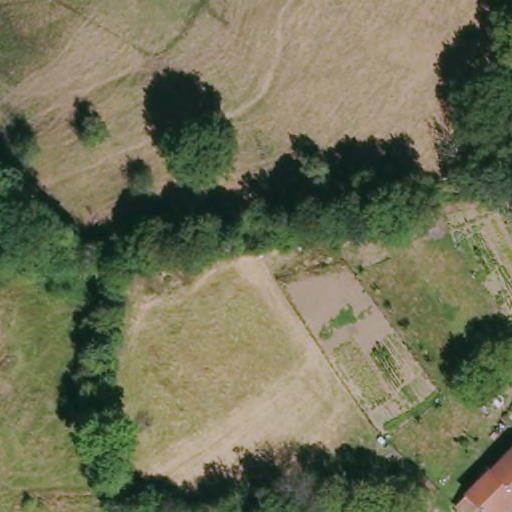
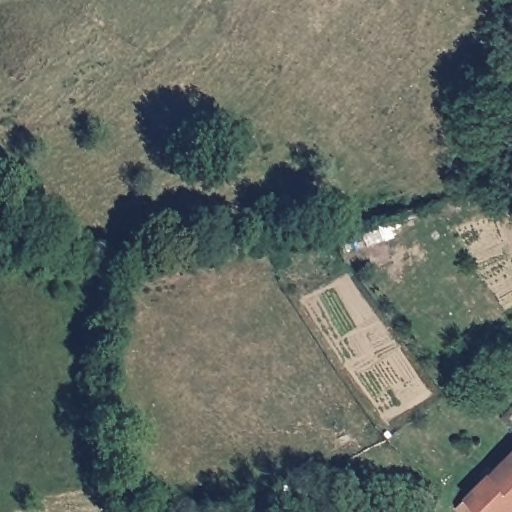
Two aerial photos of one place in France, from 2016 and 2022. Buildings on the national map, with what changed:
unchanged [(510,512),(509,510),(506,512),(486,512),(483,509),(480,512),(469,512),(462,505),(512,455),(512,512),(510,512)]

